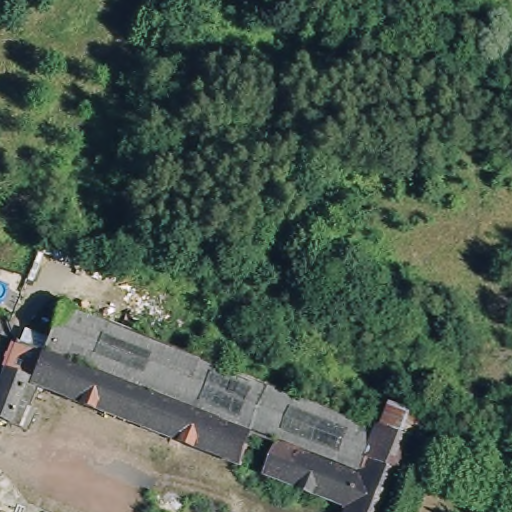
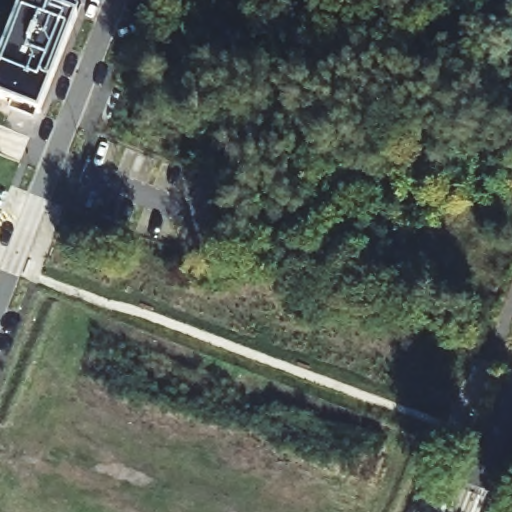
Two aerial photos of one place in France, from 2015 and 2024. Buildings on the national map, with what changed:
new [(77,14),(40,111),(0,96),(0,58),(21,0),(64,0),(80,6),(77,14)]
demolished [(2,418),(0,417),(0,396),(23,337),(52,348),(68,303),(275,381),(257,429),(283,439),(282,443),(280,446),(267,480),(37,390),(31,403),(51,411),(42,433),(2,418)]
demolished [(345,510),(267,480),(280,446),(282,443),(283,439),(257,429),(275,381),(432,441),(431,442),(428,449),(419,473),(404,512),(345,512),(345,510)]
demolished [(5,467),(0,481),(0,465),(5,467)]
demolished [(43,512),(0,512),(0,495),(43,512)]

